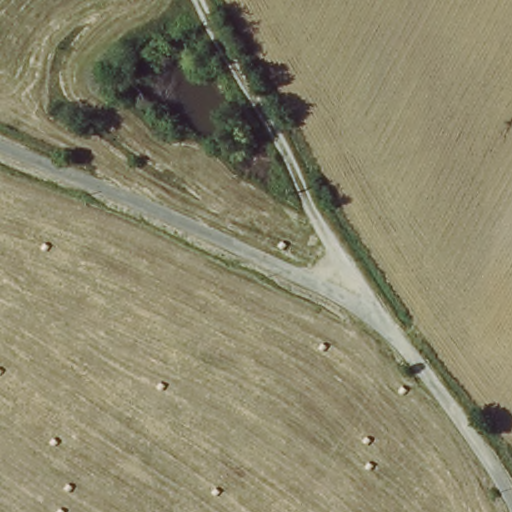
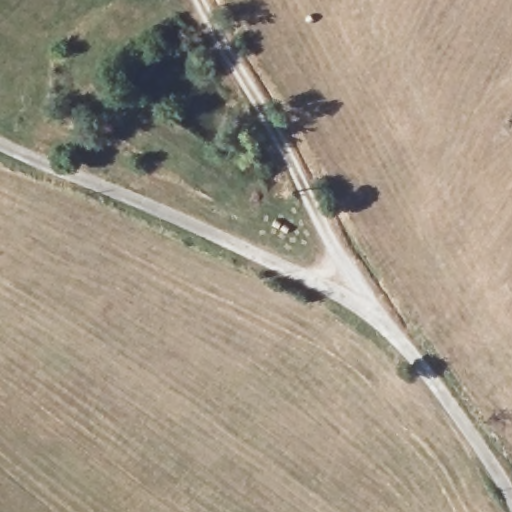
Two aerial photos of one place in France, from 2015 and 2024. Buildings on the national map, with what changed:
[]

